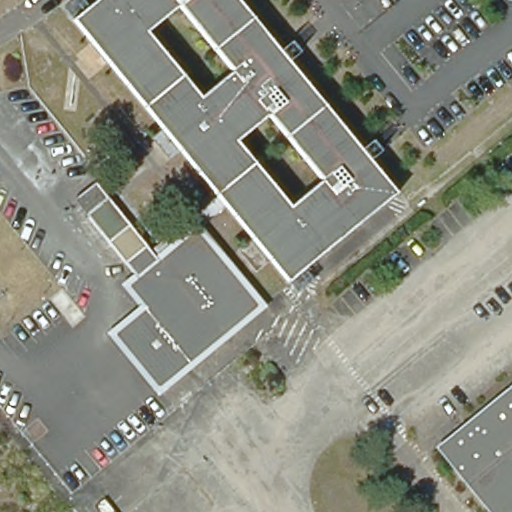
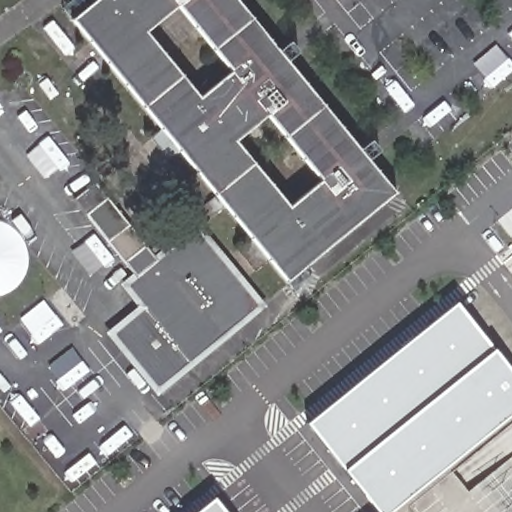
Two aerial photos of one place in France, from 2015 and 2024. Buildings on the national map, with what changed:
unchanged [(251,237),(226,206),(222,201),(219,198),(181,151),(167,163),(148,139),(162,127),(110,63),(96,75),(77,52),(92,40),(73,16),(94,0),(242,0),(273,39),(288,27),(305,50),(291,61),(362,148),(376,136),(395,160),(380,171),(398,194),(289,285),(269,260),(256,271),(237,249),(251,237)]
unchanged [(136,279),(73,203),(94,185),(151,255),(219,198),(222,201),(226,206),(198,230),(261,307),(159,392),(113,336),(145,309),(127,287),(136,279)]
new [(3,222),(11,226),(18,232),(23,239),(26,247),(28,255),(25,273),(21,280),(15,287),(8,292),(0,295),(0,222),(3,222)]
new [(306,423),(457,302),(512,370),(512,417),(394,512),(376,512),(306,423)]
demolished [(434,447),(463,422),(512,383),(512,512),(487,512),(435,448),(434,447)]
new [(512,512),(415,512),(410,506),(512,424),(512,512)]
new [(214,497),(226,512),(197,512),(214,497)]

